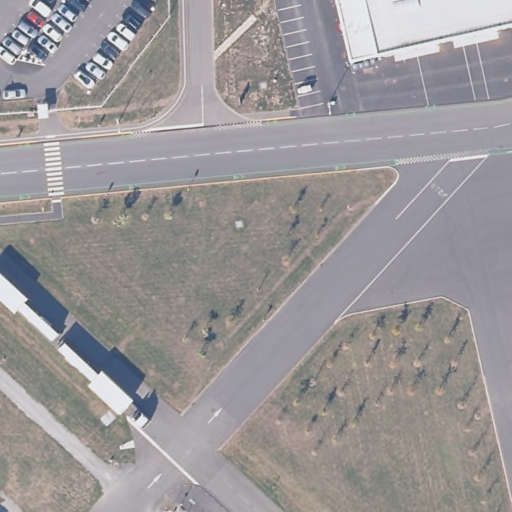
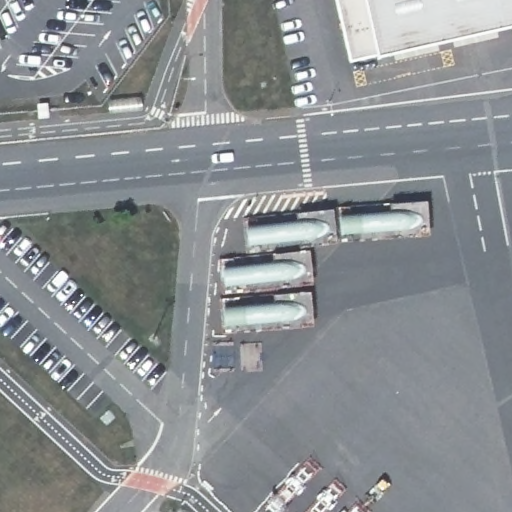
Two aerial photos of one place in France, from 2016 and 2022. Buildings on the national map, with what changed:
unchanged [(335,0),(512,0),(512,25),(350,61),(335,0)]

